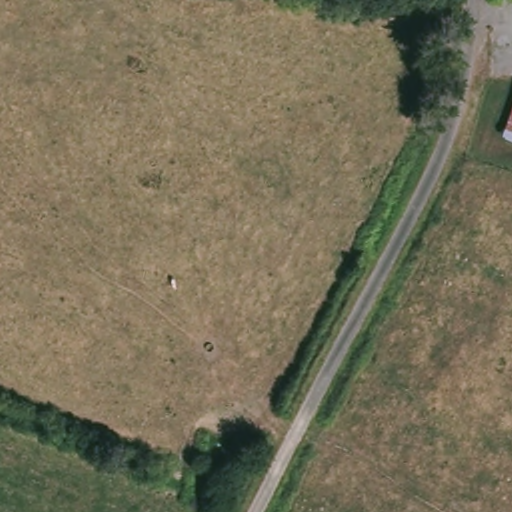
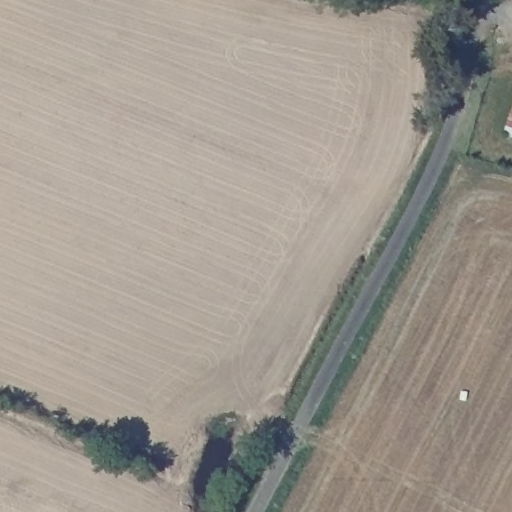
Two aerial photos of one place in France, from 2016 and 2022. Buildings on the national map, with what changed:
unchanged [(512,110),(512,138),(503,135),(512,110)]

